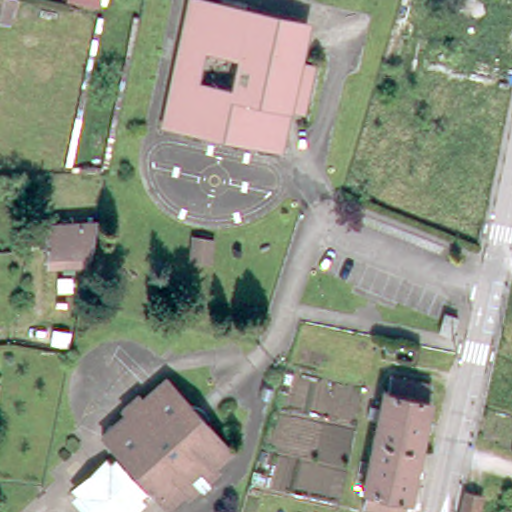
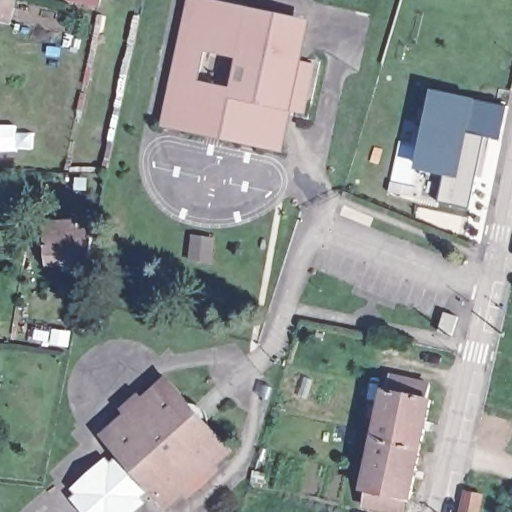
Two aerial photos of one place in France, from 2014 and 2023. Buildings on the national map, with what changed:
unchanged [(9,21),(0,19),(0,0),(13,0),(9,21)]
unchanged [(100,1),(97,0),(100,0),(100,1)]
unchanged [(274,142),(164,117),(189,0),(197,0),(298,22),(295,37),(292,37),(288,55),(278,105),(281,106),(274,142)]
unchanged [(278,105),(288,55),(311,60),(300,110),(281,106),(278,105)]
new [(510,107),(503,141),(486,139),(472,207),(439,201),(445,172),(415,167),(431,89),(510,107)]
unchanged [(44,262),(43,254),(42,241),(45,241),(44,220),(92,216),(88,237),(86,237),(82,258),(44,262)]
unchanged [(210,266),(188,262),(191,245),(213,249),(210,266)]
unchanged [(442,335),(445,313),(460,317),(457,337),(442,335)]
unchanged [(367,482),(363,482),(378,411),(368,408),(371,395),(381,397),(385,379),(388,380),(391,366),(400,367),(433,376),(429,388),(433,390),(411,492),(407,492),(404,505),(382,500),(364,496),(367,482)]
unchanged [(209,462),(213,466),(203,476),(207,481),(198,488),(194,483),(182,494),(178,488),(162,502),(99,432),(122,412),(116,405),(124,398),(154,433),(151,436),(164,451),(175,441),(162,426),(159,429),(128,396),(134,390),(139,396),(162,375),(226,446),(209,462)]
unchanged [(137,494),(116,512),(91,512),(71,489),(107,460),(137,494)]
unchanged [(481,497),(477,512),(462,512),(466,494),(481,497)]

